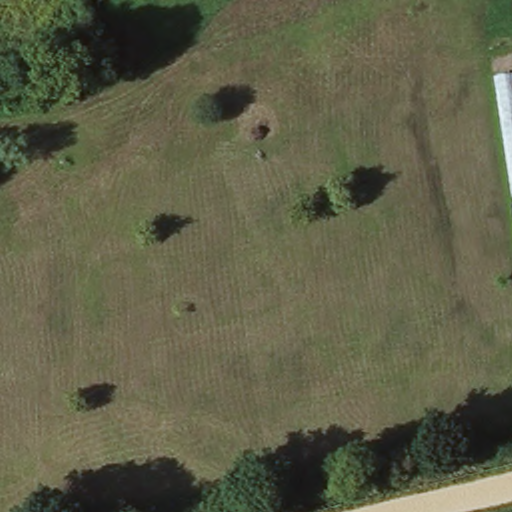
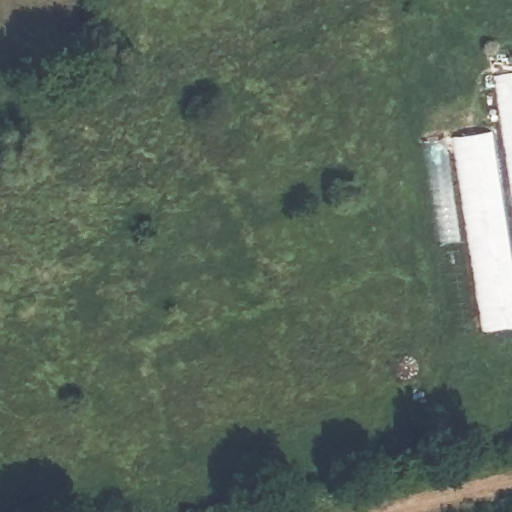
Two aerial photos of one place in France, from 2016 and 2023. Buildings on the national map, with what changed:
unchanged [(512,73),(512,189),(495,76),(512,73)]
new [(512,259),(512,329),(482,334),(452,140),(493,132),(512,259)]

